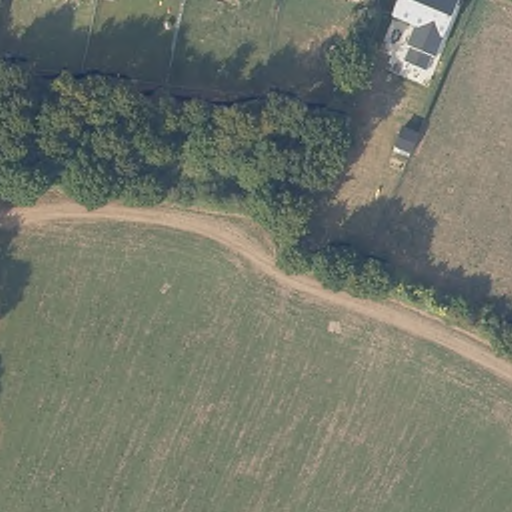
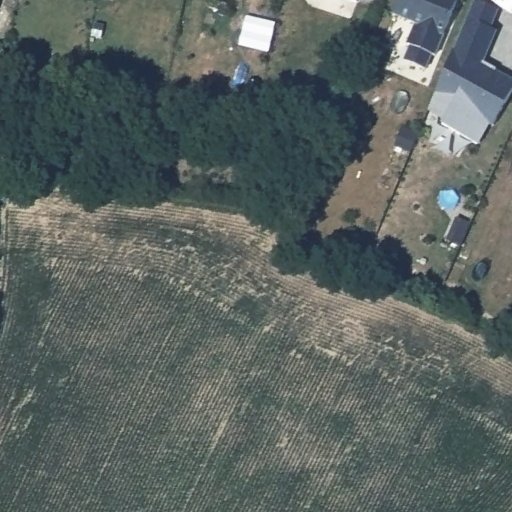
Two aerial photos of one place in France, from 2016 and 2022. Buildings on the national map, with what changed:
new [(351,0),(359,0),(358,2),(351,0)]
unchanged [(410,45),(406,44),(414,23),(390,13),(396,0),(456,0),(436,57),(432,56),(426,71),(405,60),(410,45)]
new [(476,0),(496,8),(488,27),(494,29),(485,53),(483,52),(477,67),(483,70),(491,68),(512,79),(512,88),(493,123),(489,121),(477,143),(442,124),(450,111),(446,107),(449,98),(435,92),(465,17),(471,0),(476,0)]

